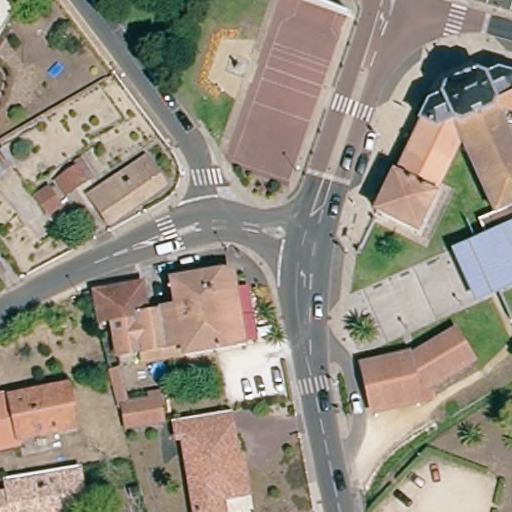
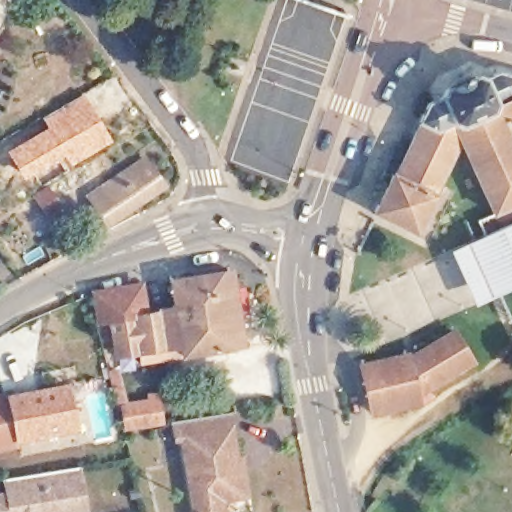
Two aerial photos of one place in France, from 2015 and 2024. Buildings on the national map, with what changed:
unchanged [(418,125),(415,123),(423,107),(438,100),(441,91),(470,78),(480,82),(493,74),(512,80),(512,125),(499,122),(457,140),(413,231),(373,210),(390,172),(394,174),(418,125)]
new [(45,126),(40,117),(83,91),(112,140),(65,167),(59,158),(22,178),(6,150),(45,126)]
unchanged [(512,151),(512,222),(482,236),(475,221),(491,213),(457,140),(499,122),(512,151)]
unchanged [(3,151),(13,167),(0,175),(0,152),(3,151)]
unchanged [(144,161),(163,188),(109,225),(91,197),(144,161)]
unchanged [(83,163),(94,179),(63,199),(53,183),(83,163)]
unchanged [(62,209),(48,218),(33,196),(48,186),(62,209)]
unchanged [(512,281),(486,293),(465,248),(512,226),(512,281)]
unchanged [(232,348),(142,363),(140,353),(116,357),(111,322),(100,324),(95,292),(142,285),(147,314),(158,312),(158,310),(173,307),(169,281),(231,271),(233,287),(244,346),(232,348)]
demolished [(477,346),(490,341),(497,364),(484,369),(477,346)]
unchanged [(359,376),(401,367),(403,374),(411,370),(410,365),(448,342),(466,371),(409,405),(411,411),(369,421),(359,376)]
unchanged [(117,372),(125,403),(118,405),(110,374),(117,372)]
unchanged [(8,395),(9,397),(66,386),(76,430),(17,441),(18,446),(0,449),(0,397),(8,395)]
unchanged [(124,430),(119,409),(149,404),(148,396),(158,394),(162,424),(153,426),(124,430)]
unchanged [(245,460),(247,474),(251,497),(226,501),(227,512),(199,512),(188,440),(181,441),(178,423),(233,414),(240,460),(245,460)]
demolished [(166,461),(139,467),(137,459),(129,430),(158,426),(166,461)]
demolished [(385,430),(392,436),(387,442),(380,436),(385,430)]
unchanged [(24,479),(63,473),(69,512),(0,512),(0,483),(24,479)]

